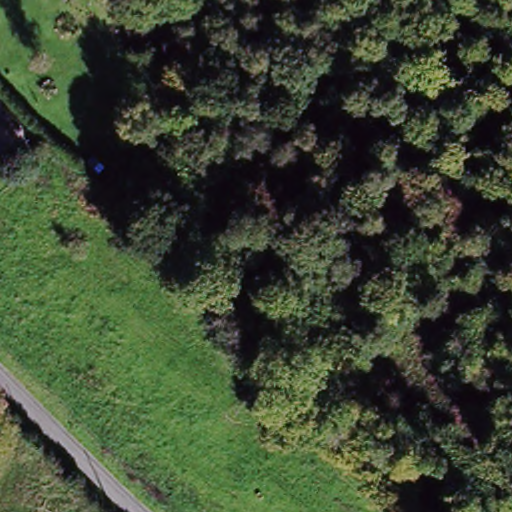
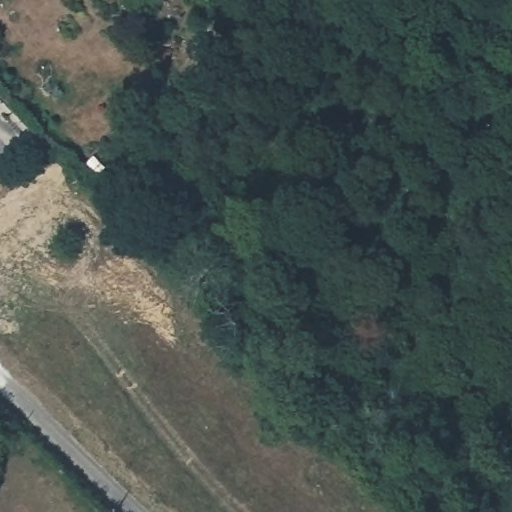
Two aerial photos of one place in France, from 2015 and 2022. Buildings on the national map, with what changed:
[]

